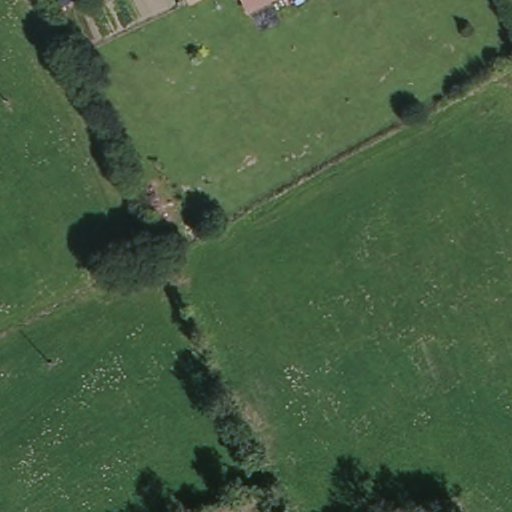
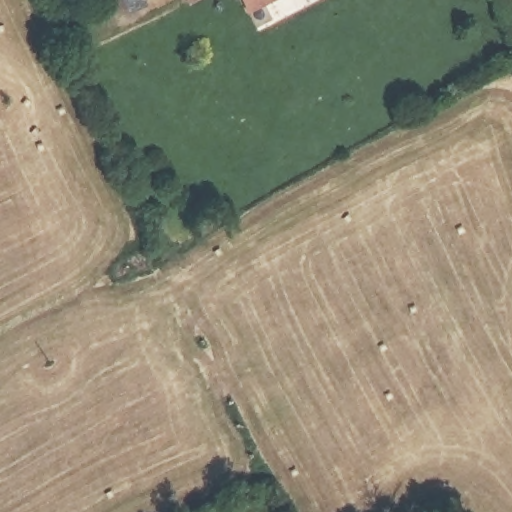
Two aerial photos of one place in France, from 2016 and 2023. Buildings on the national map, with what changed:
unchanged [(186,0),(202,0),(189,7),(186,0)]
unchanged [(242,0),(278,0),(249,15),(242,0)]

